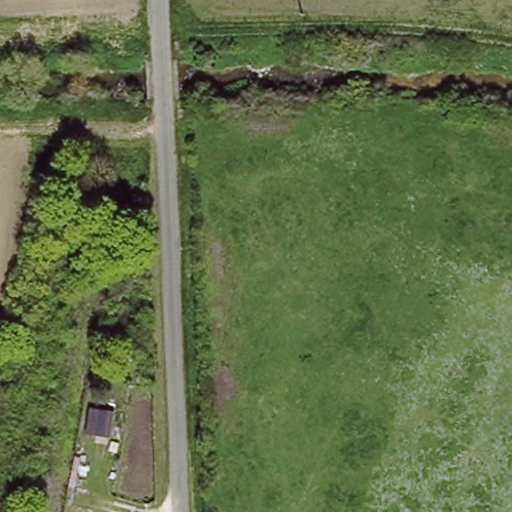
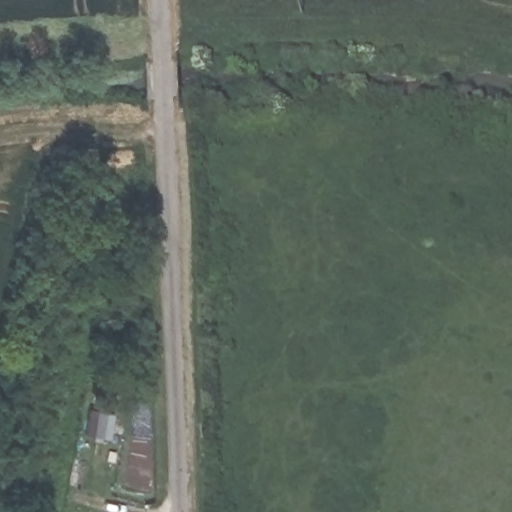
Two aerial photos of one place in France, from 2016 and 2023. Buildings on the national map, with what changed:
unchanged [(90,423),(112,427),(115,411),(125,412),(122,445),(86,440),(90,423)]

